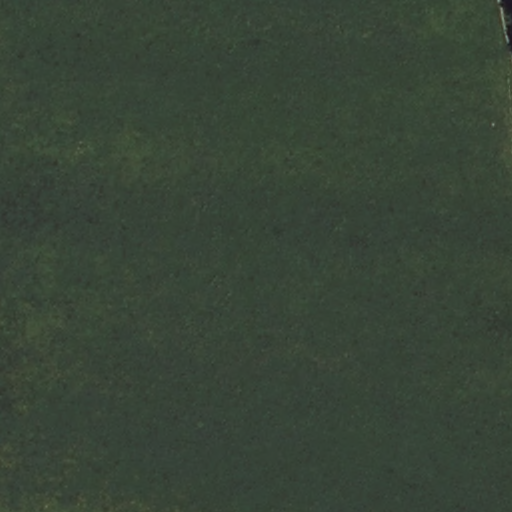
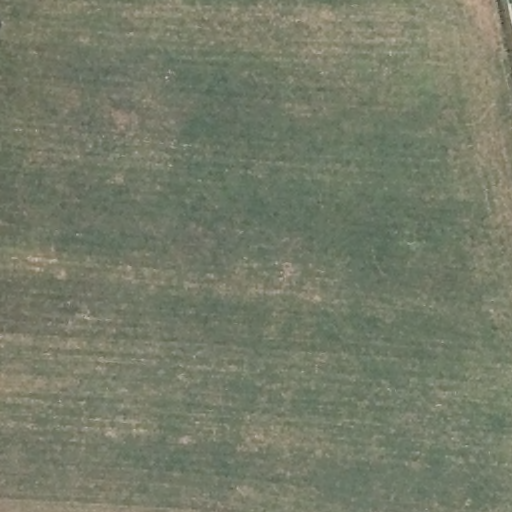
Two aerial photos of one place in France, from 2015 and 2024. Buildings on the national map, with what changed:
[]

